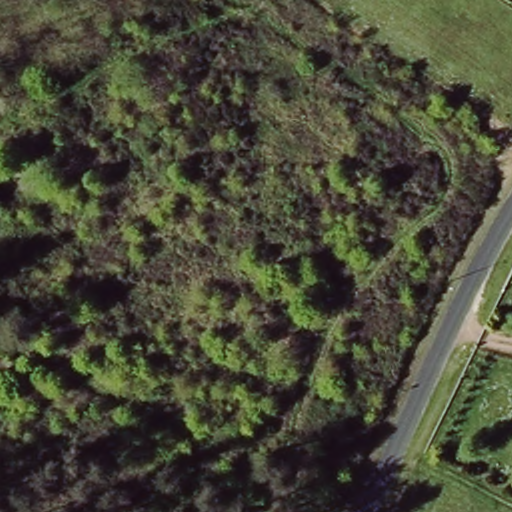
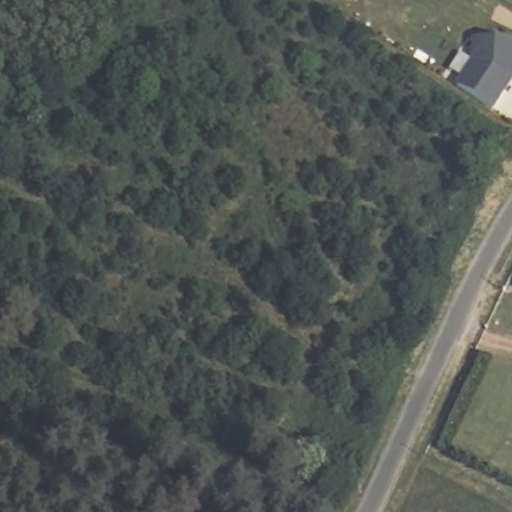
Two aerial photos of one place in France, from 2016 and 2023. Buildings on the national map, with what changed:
new [(460,88),(474,63),(475,39),(512,41),(512,84),(494,110),(460,88)]

